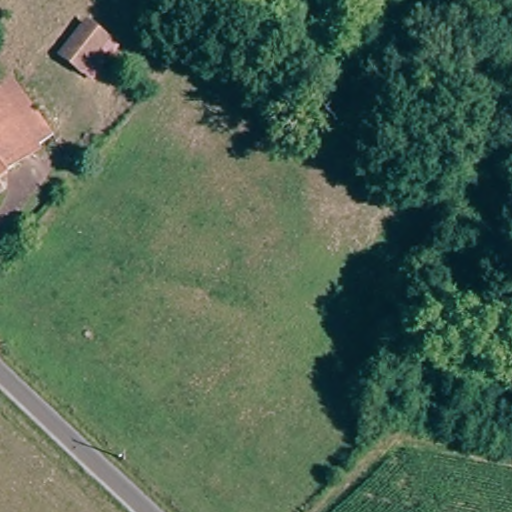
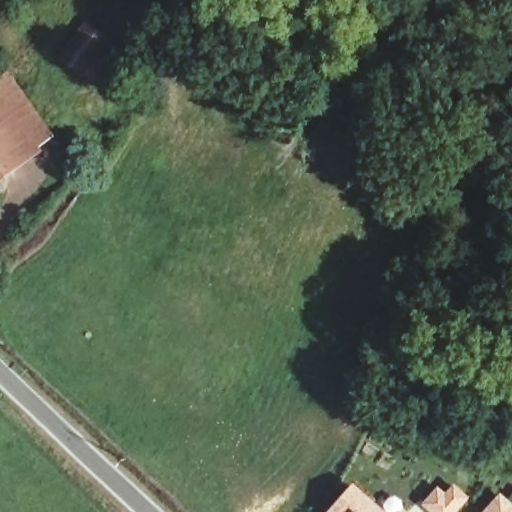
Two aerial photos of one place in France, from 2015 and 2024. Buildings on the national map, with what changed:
unchanged [(90,79),(72,59),(102,25),(123,45),(90,79)]
unchanged [(58,136),(0,179),(0,81),(6,77),(58,136)]
new [(353,481),(389,512),(326,512),(353,481)]
new [(448,491),(456,482),(471,496),(456,512),(430,512),(422,505),(439,485),(448,491)]
new [(512,505),(512,512),(488,512),(502,496),(512,505)]
new [(404,510),(406,512),(403,512),(404,510)]

